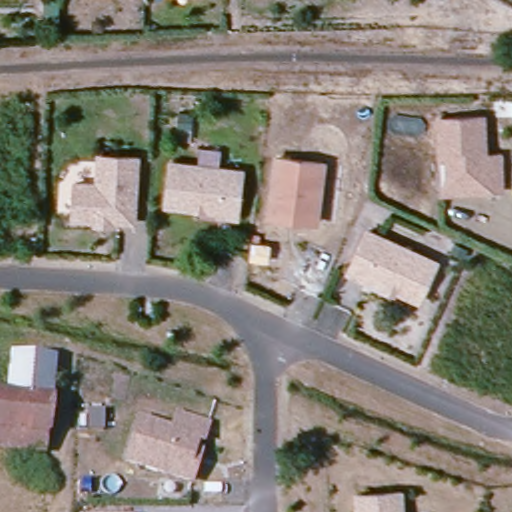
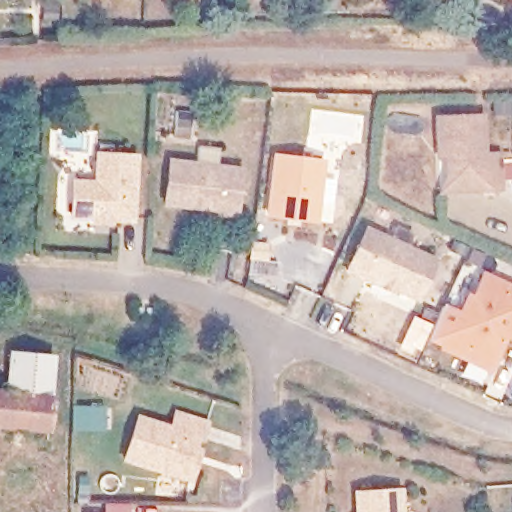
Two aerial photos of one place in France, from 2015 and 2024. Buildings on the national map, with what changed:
unchanged [(512,117),(500,116),(500,101),(512,102),(512,117)]
unchanged [(453,179),(452,162),(445,163),(445,154),(443,123),(488,121),(490,160),(505,159),(506,195),(490,195),(446,198),(453,179)]
unchanged [(71,223),(74,188),(96,189),(98,160),(136,163),(132,226),(110,225),(96,224),(71,223)]
unchanged [(241,170),(236,215),(220,214),(220,209),(167,204),(171,161),(241,170)]
unchanged [(325,167),(316,227),(270,220),(277,161),(325,167)]
unchanged [(437,266),(420,304),(369,282),(367,285),(350,277),(368,235),(437,266)]
new [(512,341),(507,339),(493,373),(440,351),(441,347),(428,342),(443,304),(459,310),(466,291),(473,294),(482,271),(512,284),(512,341)]
unchanged [(2,397),(7,356),(51,360),(43,453),(0,449),(0,397),(2,397)]
unchanged [(142,416),(175,427),(180,412),(210,423),(205,439),(200,437),(195,449),(202,451),(192,479),(127,457),(142,416)]
unchanged [(403,496),(404,512),(360,512),(360,498),(403,496)]

